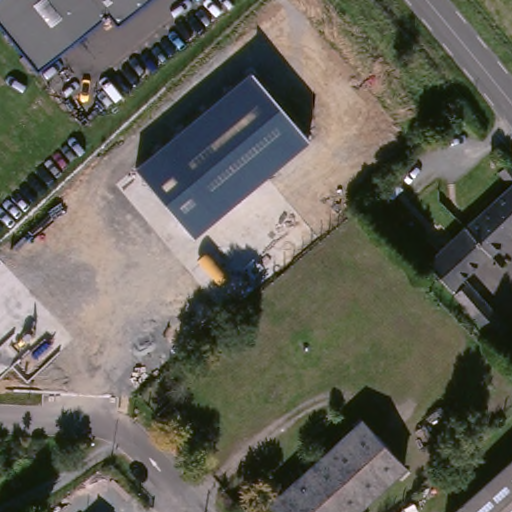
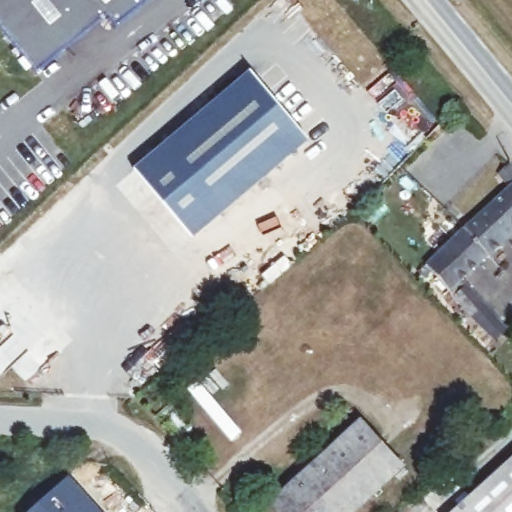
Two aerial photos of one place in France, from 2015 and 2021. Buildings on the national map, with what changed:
unchanged [(119,27),(110,16),(39,73),(0,25),(0,0),(153,0),(119,27)]
unchanged [(135,168),(250,71),(307,141),(193,238),(135,168)]
unchanged [(505,329),(494,342),(470,318),(458,305),(451,296),(447,291),(422,266),(507,186),(497,172),(507,161),(512,166),(512,234),(487,257),(486,255),(460,280),(485,306),(504,328),(505,329)]
unchanged [(267,512),(263,508),(356,424),(399,471),(354,512),(267,512)]
unchanged [(454,512),(512,459),(512,512),(454,512)]
new [(99,512),(28,512),(67,477),(99,512)]

